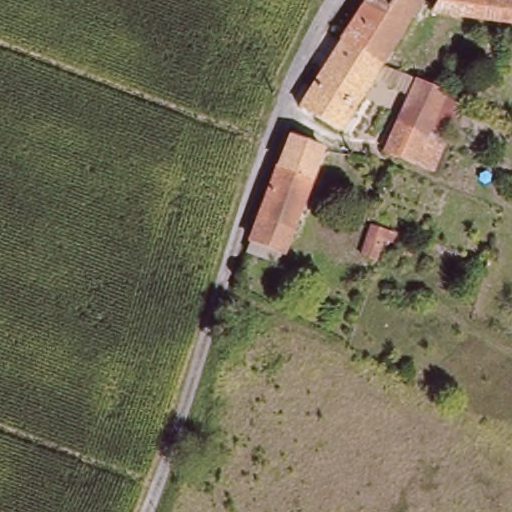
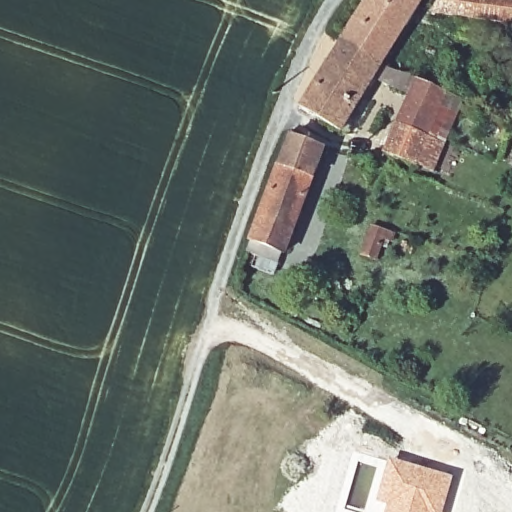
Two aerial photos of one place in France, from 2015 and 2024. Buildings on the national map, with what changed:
unchanged [(367,0),(421,0),(381,65),(341,42),(367,0)]
unchanged [(511,29),(423,17),(433,0),(512,0),(512,18),(511,29)]
unchanged [(354,109),(314,85),(328,64),(341,42),(381,65),(354,109)]
unchanged [(412,80),(458,100),(439,144),(423,137),(391,124),(412,80)]
unchanged [(300,109),(314,85),(354,109),(340,132),(300,109)]
unchanged [(428,169),(412,162),(410,165),(379,151),(391,124),(423,137),(422,139),(438,146),(428,169)]
unchanged [(282,247),(278,259),(254,250),(247,246),(258,214),(289,132),(322,144),(284,249),(282,247)]
unchanged [(374,226),(395,235),(392,242),(384,240),(376,260),(363,255),(374,226)]
new [(376,502),(389,458),(453,476),(442,512),(382,512),(385,505),(376,502)]

